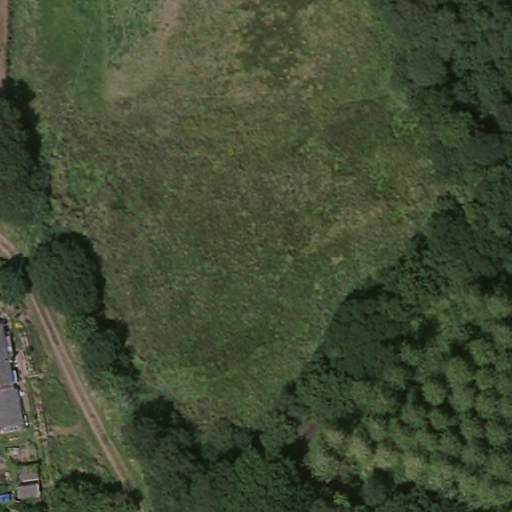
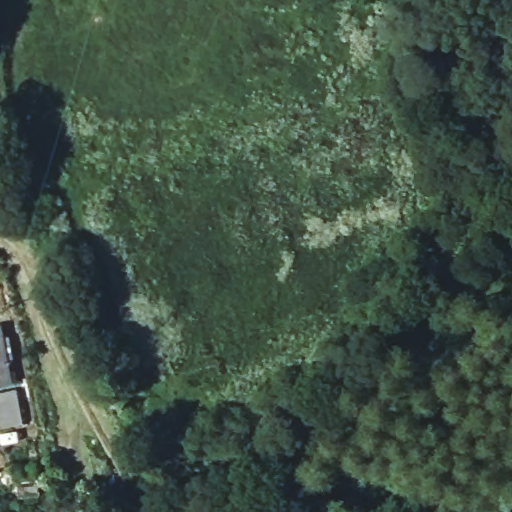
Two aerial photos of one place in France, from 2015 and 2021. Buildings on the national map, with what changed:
unchanged [(0,335),(9,386),(0,387),(0,335)]
unchanged [(0,397),(13,394),(20,432),(0,435),(0,397)]

